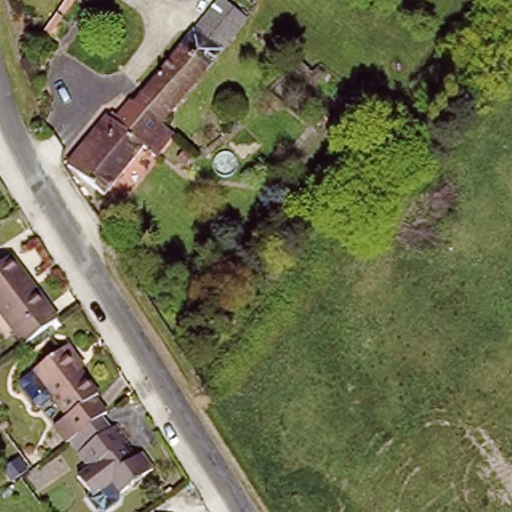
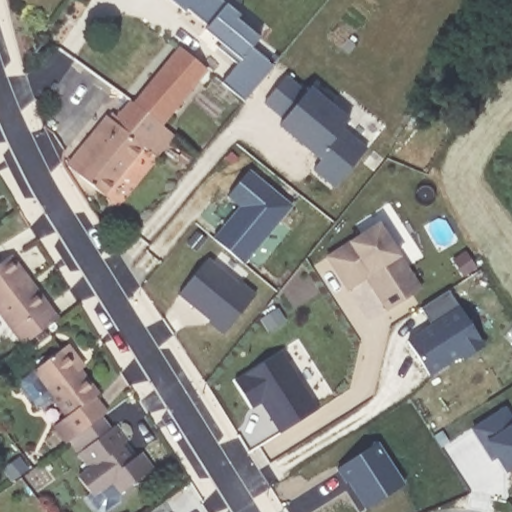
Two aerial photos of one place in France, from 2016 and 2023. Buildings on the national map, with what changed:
demolished [(144,94),(224,0),(243,0),(254,11),(165,115),(144,94)]
new [(240,15),(235,19),(260,37),(252,47),(273,66),(244,102),(222,84),(237,65),(217,47),(220,43),(204,30),(207,26),(187,9),(184,12),(170,0),(222,0),(226,3),(240,15)]
new [(162,125),(175,135),(157,157),(144,146),(103,197),(64,167),(105,114),(107,116),(110,112),(116,117),(127,101),(133,104),(177,47),(207,71),(162,125)]
new [(334,189),(312,171),(320,160),(279,127),(285,119),(263,104),(287,75),(309,90),(311,87),(350,121),(342,130),(367,149),(334,189)]
demolished [(90,138),(103,149),(110,141),(98,129),(117,107),(125,116),(144,94),(165,115),(178,129),(157,152),(148,142),(104,191),(87,176),(70,160),(90,138)]
new [(244,265),(212,240),(237,207),(227,197),(249,170),(293,206),(244,265)]
new [(385,312),(365,281),(346,292),(324,257),(347,242),(380,222),(382,226),(394,219),(410,244),(397,251),(422,290),(385,312)]
unchanged [(0,312),(0,263),(10,256),(59,319),(25,344),(0,312)]
new [(224,336),(208,324),(210,321),(177,296),(208,258),(234,280),(235,277),(256,295),(224,336)]
new [(464,360),(461,357),(430,376),(405,340),(430,324),(420,308),(447,291),(457,306),(485,346),(464,360)]
unchanged [(101,416),(76,433),(68,440),(57,423),(68,415),(31,363),(67,339),(80,355),(74,362),(99,393),(95,397),(107,412),(101,416)]
new [(280,433),(262,403),(252,409),(234,381),(280,352),(318,410),(280,433)]
new [(505,474),(495,458),(492,462),(470,428),(505,407),(512,418),(512,469),(505,474)]
unchanged [(110,426),(115,421),(126,435),(123,439),(135,455),(142,451),(154,468),(113,496),(107,487),(95,496),(78,476),(89,467),(77,448),(84,445),(76,433),(101,416),(110,426)]

